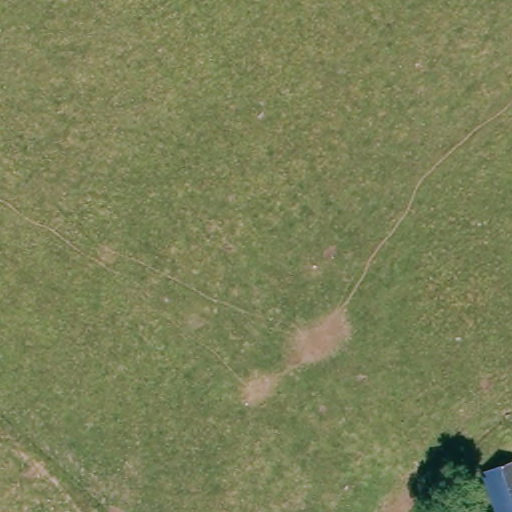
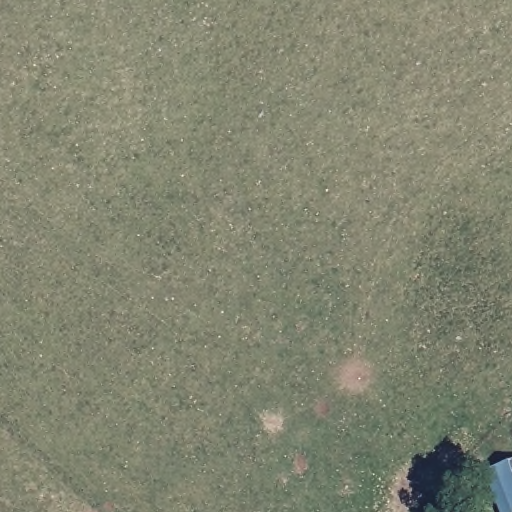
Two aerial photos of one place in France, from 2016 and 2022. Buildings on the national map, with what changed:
unchanged [(512,463),(512,512),(502,512),(487,473),(512,463)]

